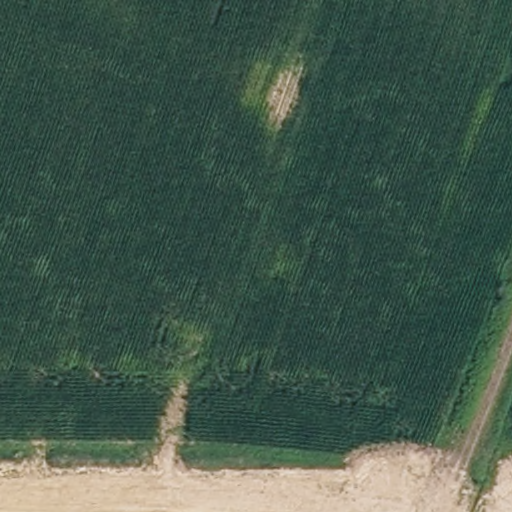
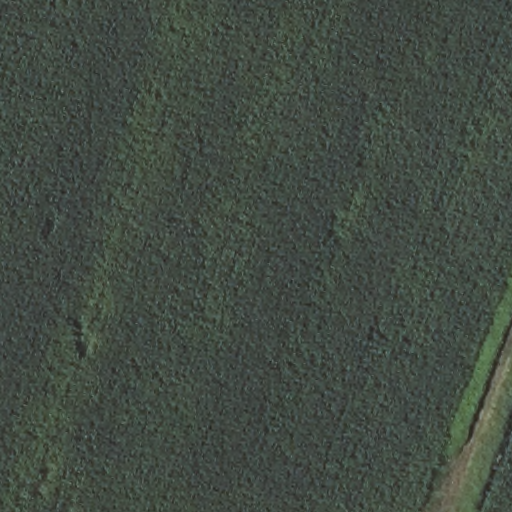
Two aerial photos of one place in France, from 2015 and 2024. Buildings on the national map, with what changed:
[]

